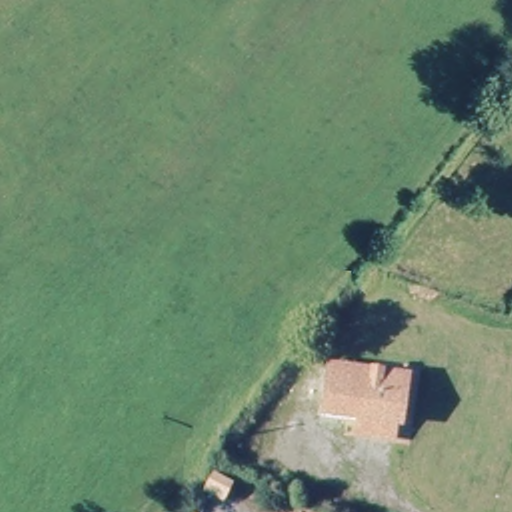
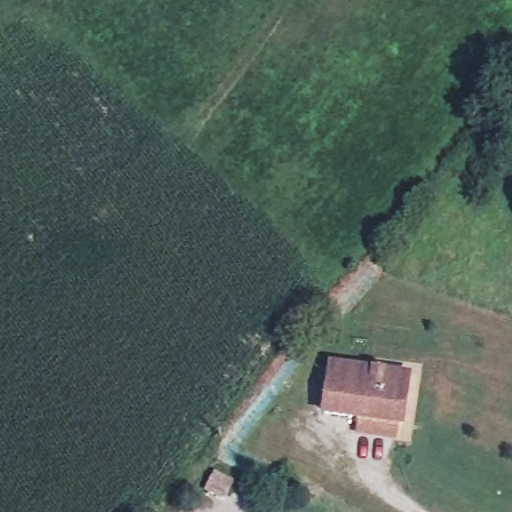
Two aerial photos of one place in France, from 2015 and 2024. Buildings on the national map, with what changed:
unchanged [(329,371),(404,383),(395,430),(321,417),(329,371)]

